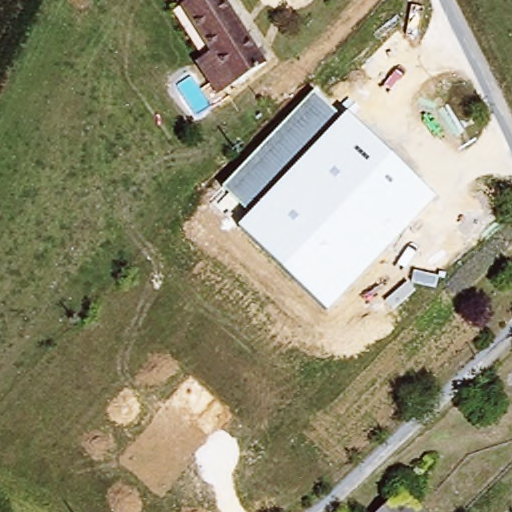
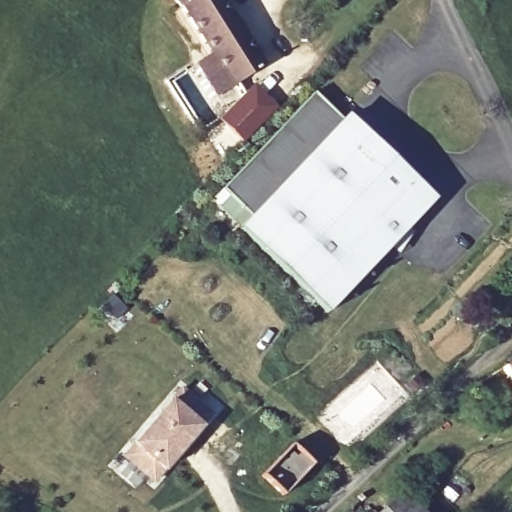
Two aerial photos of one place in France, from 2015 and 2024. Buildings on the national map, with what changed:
unchanged [(215,97),(193,65),(205,55),(178,9),(172,0),(221,0),(261,67),(215,97)]
unchanged [(342,120),(251,214),(222,188),(313,93),(342,120)]
unchanged [(436,200),(327,314),(238,228),(251,214),(342,120),(347,114),(436,200)]
new [(213,413),(153,484),(120,455),(180,384),(213,413)]
new [(312,464),(282,496),(262,475),(292,444),(312,464)]
unchanged [(403,491),(421,512),(379,512),(403,491)]

